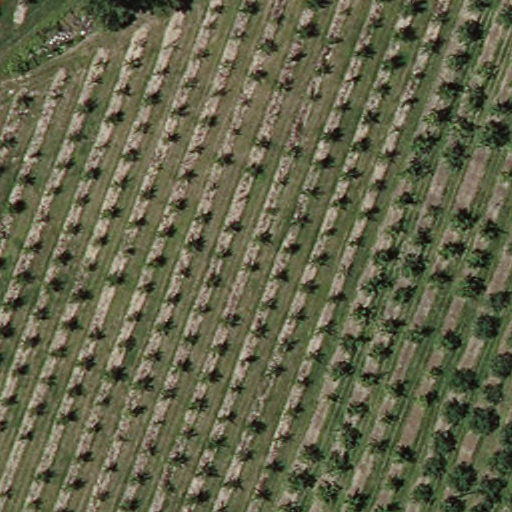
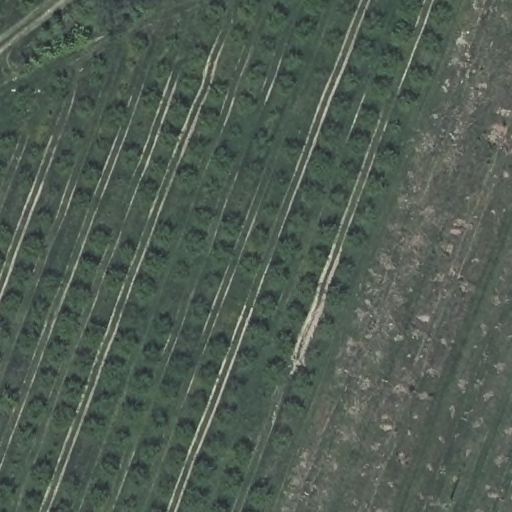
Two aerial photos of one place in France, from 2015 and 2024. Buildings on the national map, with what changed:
[]

